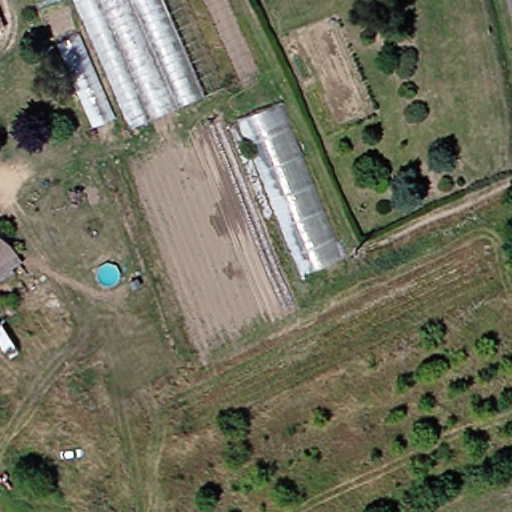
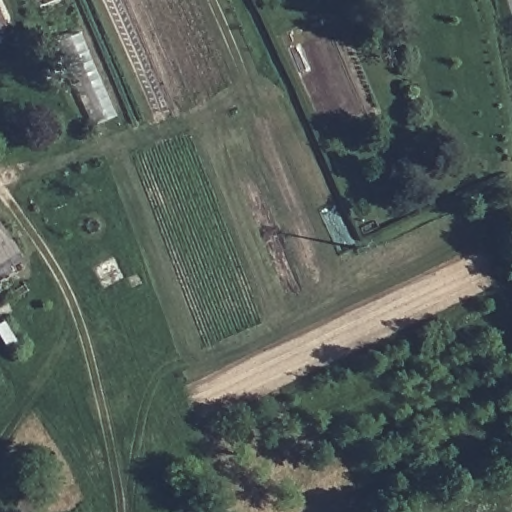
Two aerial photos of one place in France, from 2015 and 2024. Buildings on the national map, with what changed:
demolished [(233,85),(141,122),(88,0),(196,0),(233,85)]
unchanged [(0,29),(0,8),(8,26),(0,29)]
demolished [(343,257),(301,277),(236,119),(279,101),(343,257)]
unchanged [(0,281),(0,230),(23,261),(13,267),(15,271),(0,281)]

